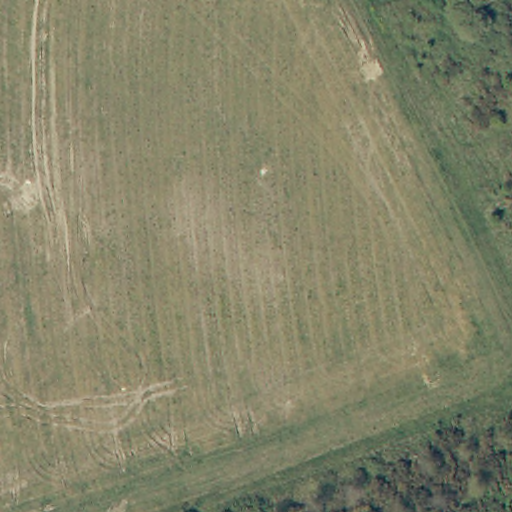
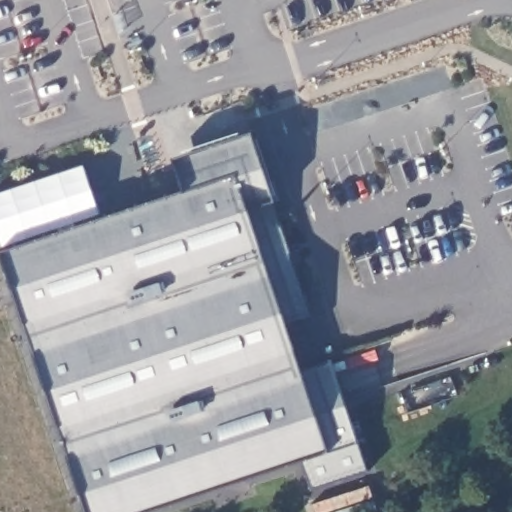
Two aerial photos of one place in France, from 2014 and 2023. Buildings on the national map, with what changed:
new [(170,158),(250,131),(274,202),(311,314),(283,323),(297,370),(328,360),(355,442),(325,452),(146,512),(83,512),(0,258),(0,253),(180,193),(170,158)]

